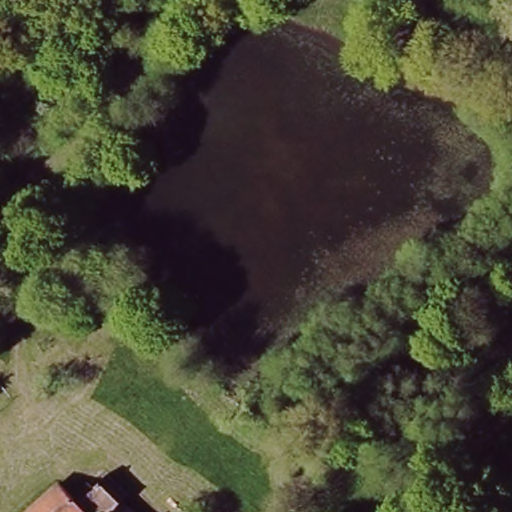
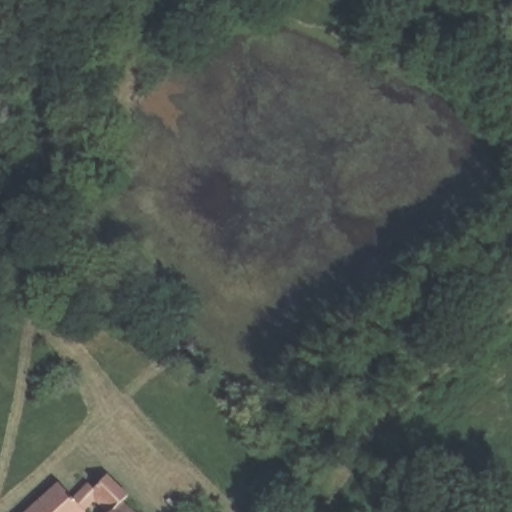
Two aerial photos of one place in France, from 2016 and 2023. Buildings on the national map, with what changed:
unchanged [(92,493),(104,478),(126,497),(120,505),(128,512),(111,512),(112,510),(92,493)]
unchanged [(70,509),(73,512),(29,512),(54,490),(70,509)]

